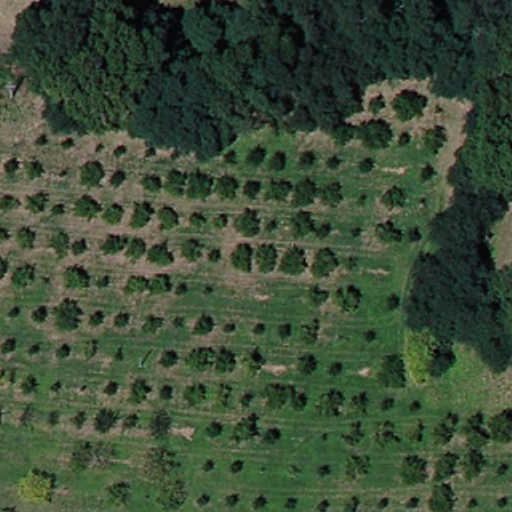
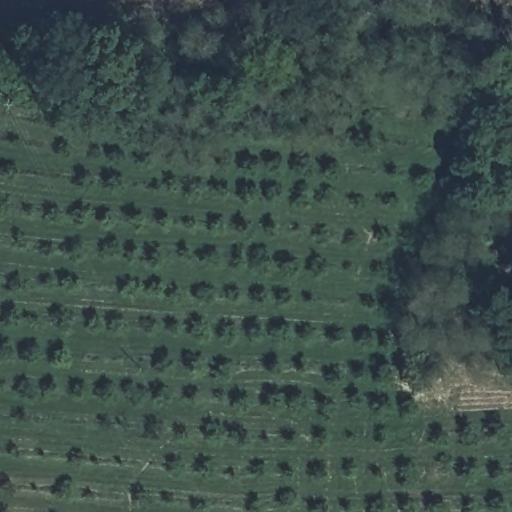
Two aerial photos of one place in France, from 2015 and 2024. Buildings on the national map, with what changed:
[]

